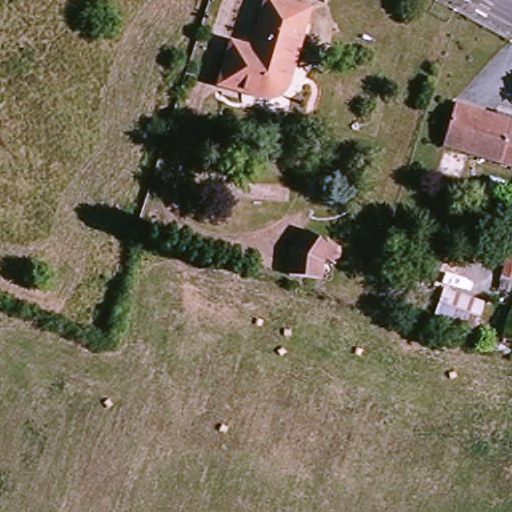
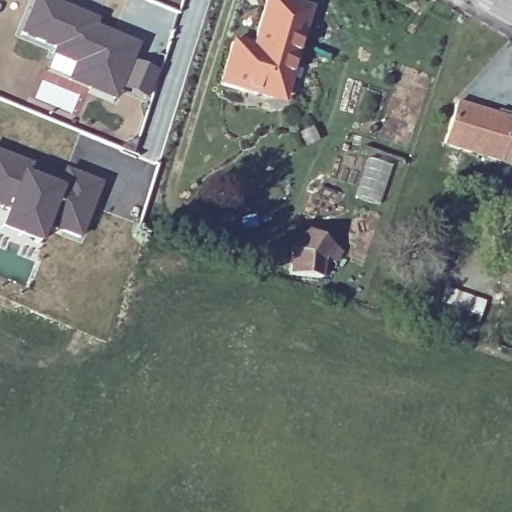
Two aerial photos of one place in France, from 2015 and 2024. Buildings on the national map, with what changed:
new [(145,100),(120,90),(114,102),(43,71),(51,50),(15,35),(30,0),(50,0),(96,19),(95,23),(138,44),(132,60),(157,71),(145,100)]
unchanged [(284,87),(279,97),(263,103),(217,85),(230,42),(252,50),(269,0),(274,0),(309,11),(284,87)]
unchanged [(512,127),(512,165),(447,145),(461,102),(506,116),(504,125),(512,127)]
new [(59,175),(61,169),(100,183),(79,239),(46,226),(39,243),(0,228),(0,221),(4,209),(0,208),(0,153),(59,175)]
unchanged [(346,236),(333,253),(326,276),(298,266),(303,244),(320,221),(346,236)]
unchanged [(432,318),(445,288),(485,303),(475,334),(432,318)]

